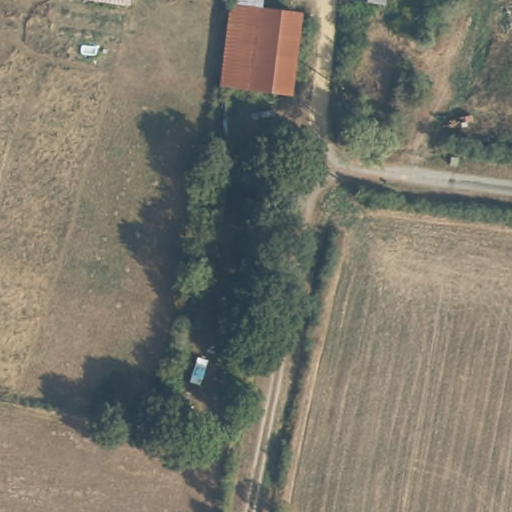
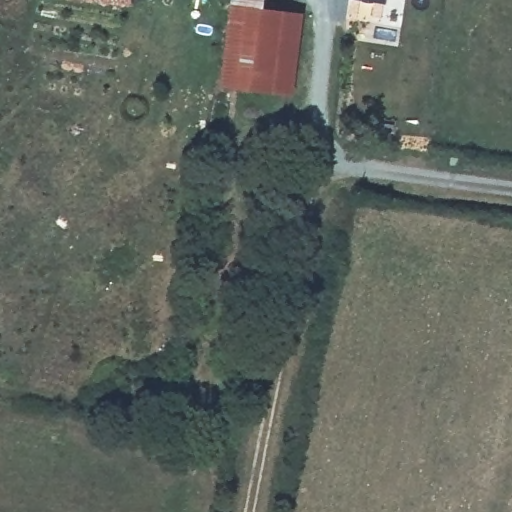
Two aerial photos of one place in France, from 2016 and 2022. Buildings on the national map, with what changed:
unchanged [(100,0),(127,0),(126,4),(100,0)]
unchanged [(263,9),(233,5),(234,0),(264,0),(263,9)]
unchanged [(386,1),(376,0),(387,0),(386,1)]
unchanged [(255,88),(223,85),(233,5),(263,9),(255,88)]
unchanged [(301,14),(290,91),(255,88),(263,9),(301,14)]
unchanged [(271,178),(259,175),(262,152),(275,154),(271,178)]

